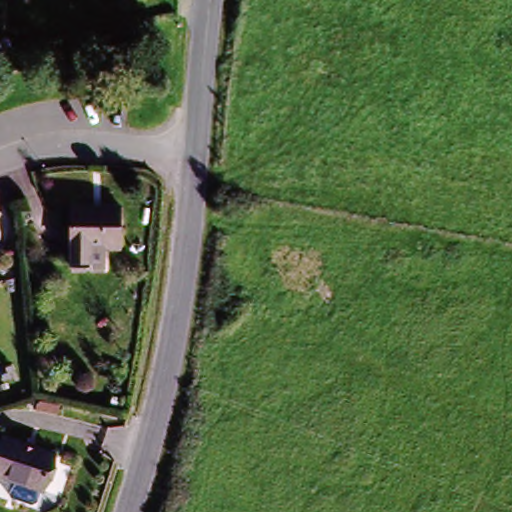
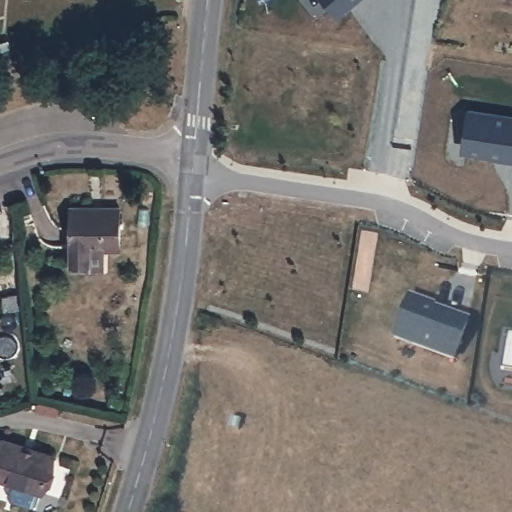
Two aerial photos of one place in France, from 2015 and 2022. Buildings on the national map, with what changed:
new [(337,17),(321,0),(356,0),(337,17)]
unchanged [(12,49),(14,58),(0,60),(0,51),(12,49)]
new [(460,152),(465,108),(512,114),(512,159),(460,152)]
unchanged [(72,275),(71,257),(66,213),(119,209),(124,252),(103,254),(106,273),(72,275)]
new [(436,300),(435,304),(471,317),(455,362),(392,339),(409,291),(436,300)]
new [(500,367),(505,330),(512,330),(512,368),(500,367)]
unchanged [(8,441),(57,458),(45,496),(0,480),(0,462),(8,441)]

